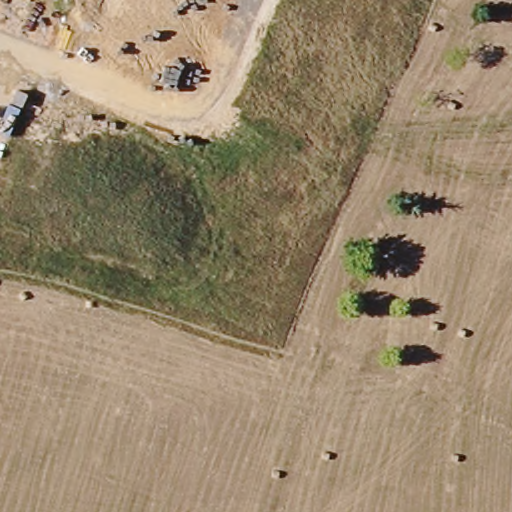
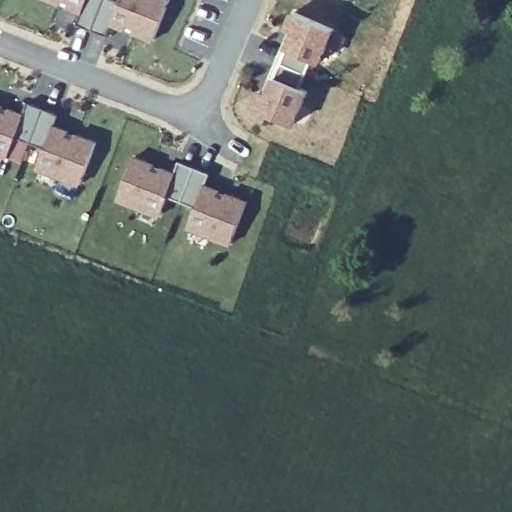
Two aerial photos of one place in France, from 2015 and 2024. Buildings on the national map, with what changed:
new [(63,3),(56,0),(64,0),(63,3)]
new [(94,30),(78,24),(83,11),(70,6),(72,0),(106,0),(94,30)]
new [(106,0),(121,0),(122,1),(123,0),(172,0),(156,40),(135,31),(138,26),(131,23),(128,29),(115,23),(110,36),(94,30),(106,0)]
new [(298,30),(291,28),(297,13),(337,30),(323,63),(315,60),(309,75),(284,63),(298,30)]
new [(262,93),(269,95),(284,63),(309,75),(303,88),(310,92),(296,125),(256,108),(262,93)]
new [(1,111),(8,114),(10,108),(24,114),(28,101),(44,107),(31,143),(16,136),(8,156),(0,153),(0,105),(3,106),(1,111)]
new [(44,107),(60,114),(55,126),(69,132),(67,137),(74,140),(76,135),(97,143),(80,185),(37,168),(45,148),(31,143),(44,107)]
new [(134,157),(155,166),(152,171),(159,174),(162,168),(175,174),(180,161),(196,167),(182,202),(168,197),(160,216),(118,200),(134,157)]
new [(196,167),(212,174),(207,187),(220,192),(218,198),(225,200),(227,195),(248,203),(232,245),(189,228),(196,208),(182,202),(196,167)]

